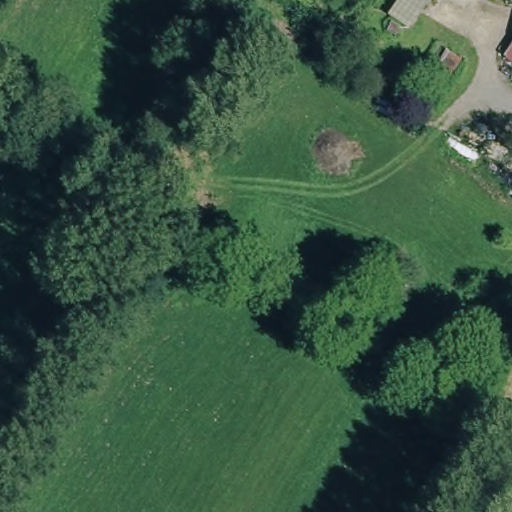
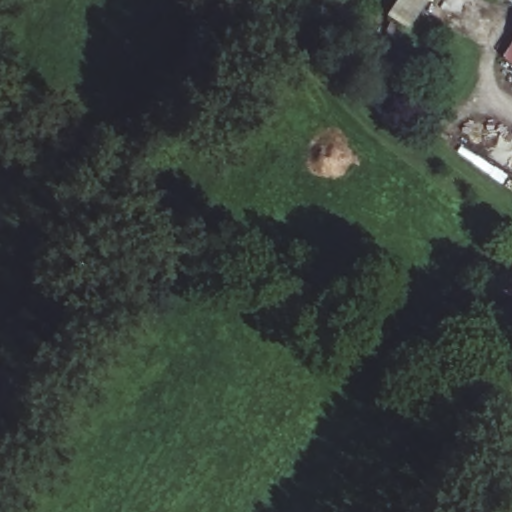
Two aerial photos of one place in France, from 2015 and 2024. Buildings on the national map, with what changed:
unchanged [(512,37),(512,65),(499,56),(512,37)]

